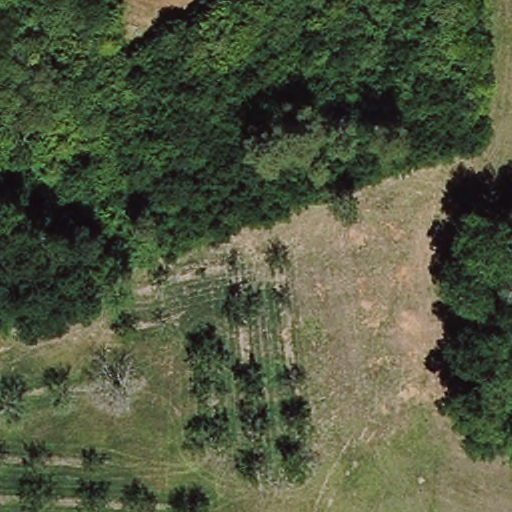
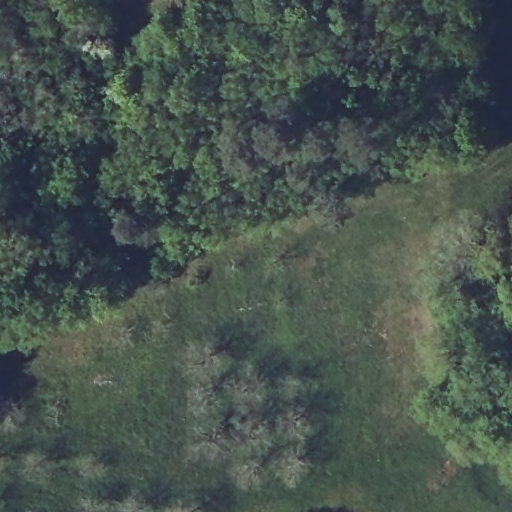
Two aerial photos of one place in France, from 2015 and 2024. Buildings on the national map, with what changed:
unchanged [(480,447),(467,447),(467,429),(480,429),(480,447)]

